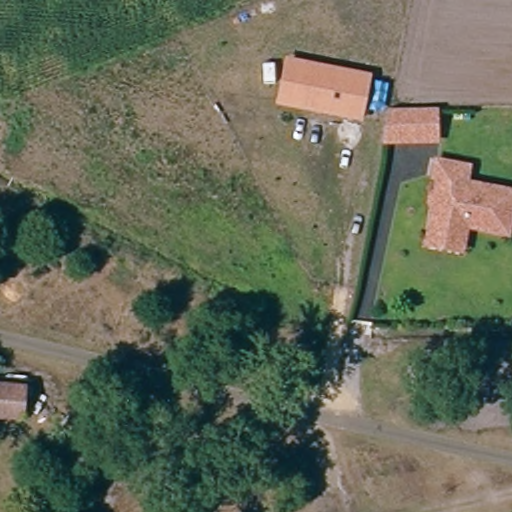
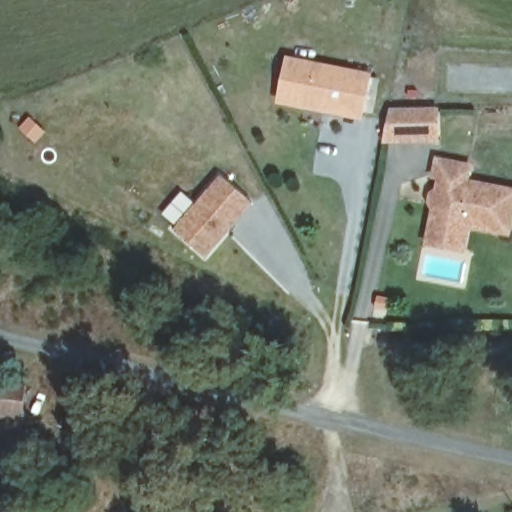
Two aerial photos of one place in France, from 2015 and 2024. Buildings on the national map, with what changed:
unchanged [(282,94),(291,54),(370,74),(360,113),(343,109),(306,100),(282,94)]
unchanged [(440,138),(386,140),(387,132),(393,107),(438,106),(440,138)]
unchanged [(430,243),(432,228),(441,176),(437,176),(440,158),(472,164),(469,181),(512,188),(512,217),(510,232),(469,224),(467,234),(465,249),(430,243)]
new [(253,202),(207,257),(172,230),(220,174),(253,202)]
unchanged [(0,384),(28,388),(25,424),(0,423),(0,384)]

